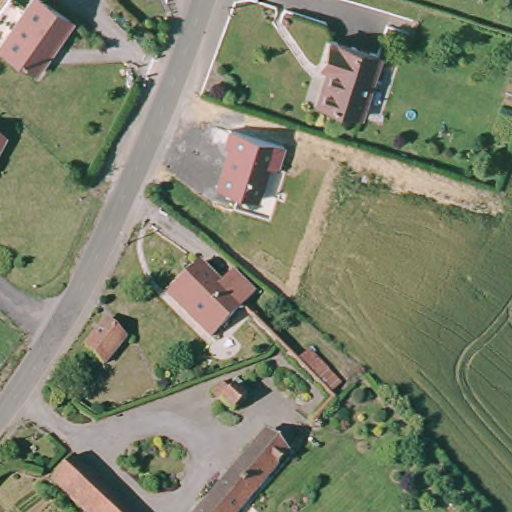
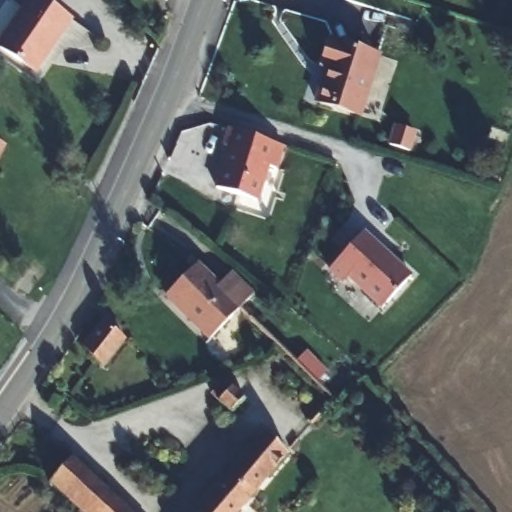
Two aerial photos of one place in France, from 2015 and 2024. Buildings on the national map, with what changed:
unchanged [(74,18),(39,72),(0,49),(0,39),(25,0),(44,0),(74,18)]
unchanged [(317,100),(326,70),(317,67),(326,42),(375,56),(357,112),(317,100)]
unchanged [(287,146),(281,172),(268,168),(259,202),(216,190),(225,153),(222,152),(225,131),(287,146)]
new [(381,308),(347,278),(342,284),(329,271),(365,232),(412,272),(381,308)]
unchanged [(190,270),(209,285),(222,272),(250,296),(212,341),(165,301),(190,270)]
unchanged [(80,345),(101,321),(121,338),(99,362),(80,345)]
unchanged [(222,400),(231,409),(235,405),(245,415),(235,427),(215,408),(222,400)]
unchanged [(195,512),(268,431),(280,442),(285,435),(292,442),(295,438),(302,444),(240,512),(195,512)]
unchanged [(72,457),(133,512),(85,512),(50,481),(72,457)]

